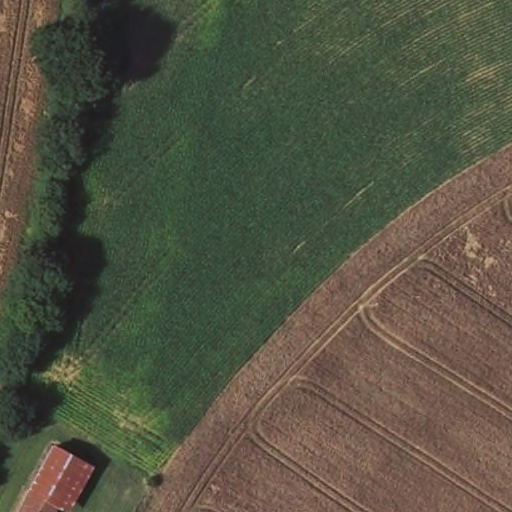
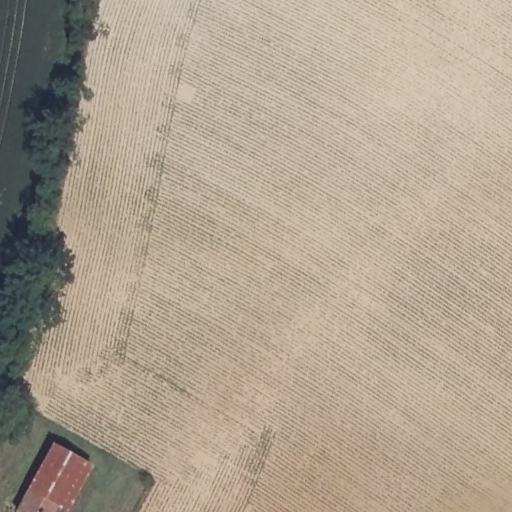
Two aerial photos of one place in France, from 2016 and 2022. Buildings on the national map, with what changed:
unchanged [(96,465),(69,512),(58,512),(52,510),(51,512),(12,512),(49,438),(96,465)]

